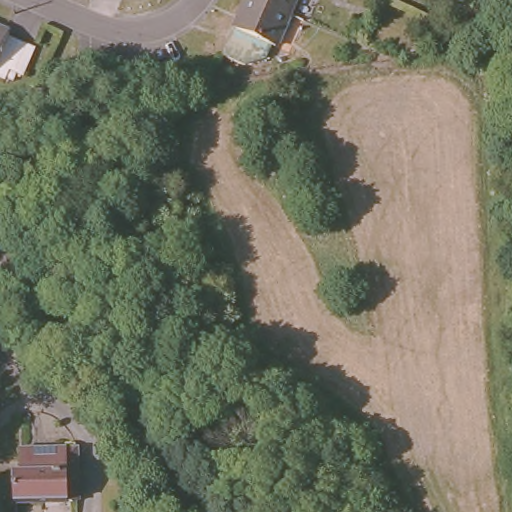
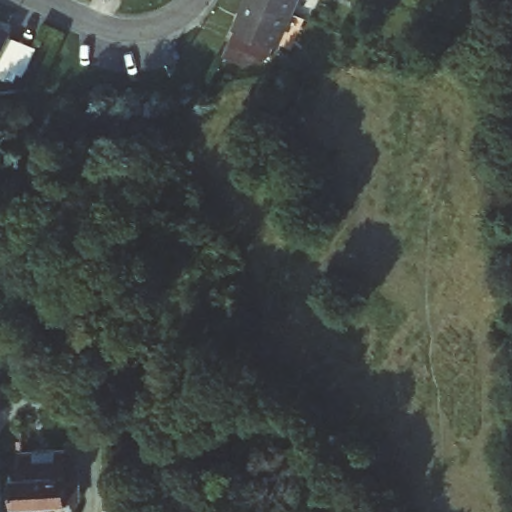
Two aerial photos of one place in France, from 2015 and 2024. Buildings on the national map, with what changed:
unchanged [(247,2),(248,0),(298,0),(290,20),(247,2)]
unchanged [(290,20),(273,60),(267,59),(265,65),(227,52),(247,2),(290,20)]
unchanged [(10,74),(0,70),(0,40),(22,49),(10,74)]
unchanged [(17,481),(22,482),(21,457),(77,455),(78,507),(17,505),(17,481)]

